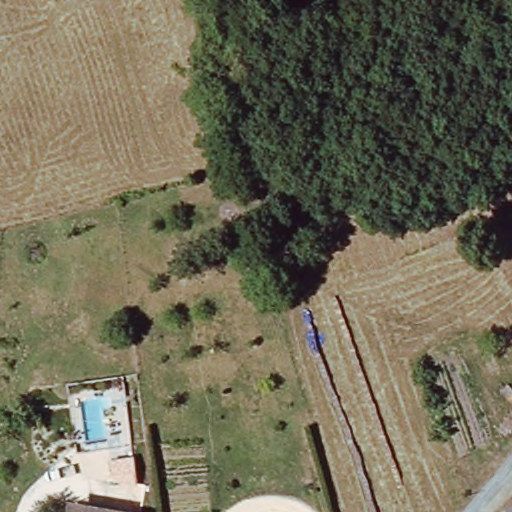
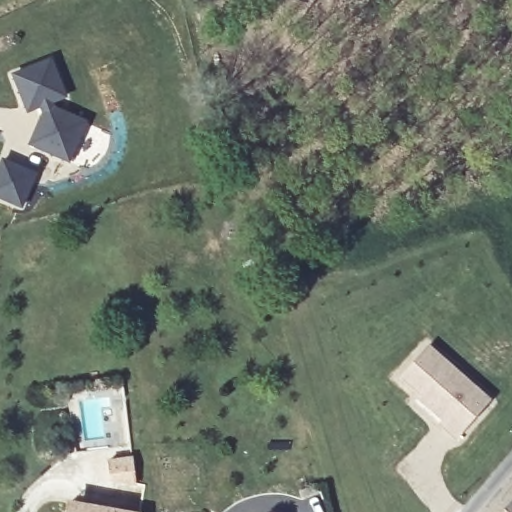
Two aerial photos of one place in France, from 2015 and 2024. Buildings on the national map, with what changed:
new [(48,62),(63,98),(48,104),(49,109),(83,125),(64,163),(27,147),(41,115),(39,108),(25,113),(10,76),(48,62)]
new [(424,347),(487,400),(454,438),(437,423),(441,419),(427,407),(426,401),(398,377),(424,347)]
demolished [(494,359),(509,353),(512,363),(512,380),(503,383),(494,359)]
unchanged [(70,504),(131,512),(69,512),(70,504)]
unchanged [(512,507),(512,512),(507,512),(512,507)]

